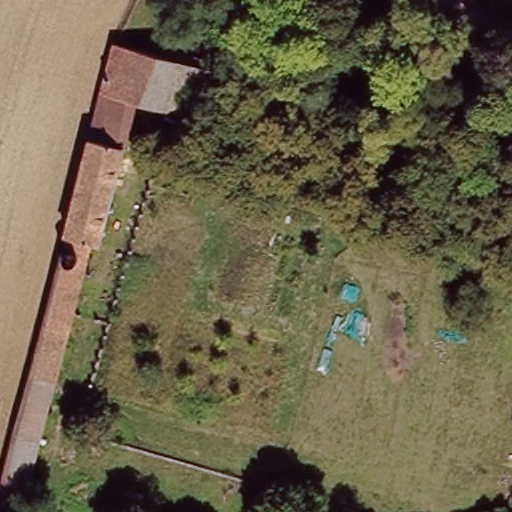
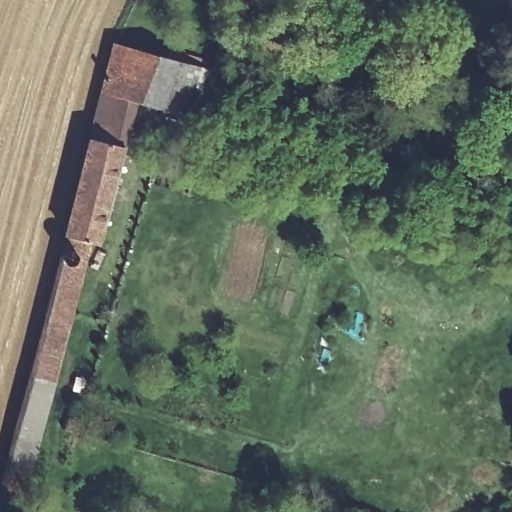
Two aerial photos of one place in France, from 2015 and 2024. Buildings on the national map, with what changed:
unchanged [(121,53),(126,36),(216,66),(200,113),(147,98),(111,88),(121,53)]
unchanged [(111,88),(147,98),(134,149),(98,139),(111,88)]
unchanged [(98,139),(134,149),(111,234),(101,232),(75,225),(98,139)]
unchanged [(190,180),(209,184),(203,206),(183,200),(190,180)]
unchanged [(75,225),(101,232),(111,234),(104,251),(97,255),(81,263),(66,260),(75,225)]
unchanged [(97,255),(51,419),(26,512),(4,512),(1,511),(47,328),(66,260),(81,263),(97,255)]
unchanged [(58,425),(68,429),(64,444),(53,439),(58,425)]

